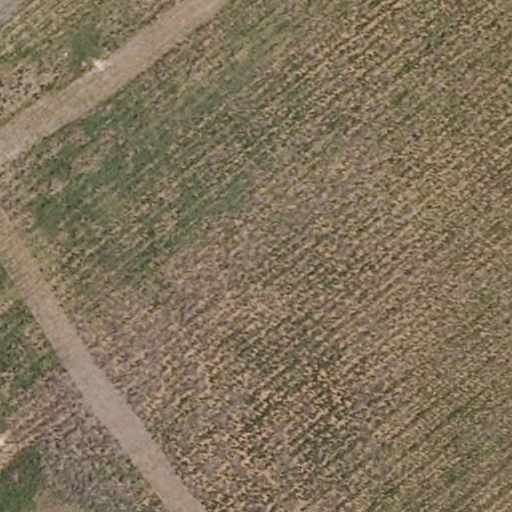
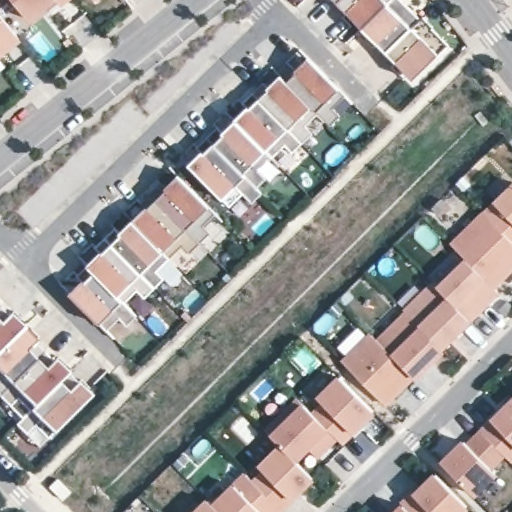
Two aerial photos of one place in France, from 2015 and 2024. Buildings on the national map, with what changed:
new [(29,19),(13,0),(50,0),(29,19)]
new [(59,2),(57,0),(62,0),(59,2)]
new [(420,19),(422,17),(434,28),(432,30),(449,46),(414,81),(334,0),(399,0),(420,19)]
new [(0,58),(0,15),(22,41),(0,58)]
new [(197,147),(190,140),(211,119),(218,127),(242,102),(235,95),(256,74),(263,81),(276,69),(273,67),(283,57),(291,64),(303,51),(339,87),(326,101),(339,114),(330,124),(311,105),(298,118),(312,132),(292,151),(278,137),(253,162),(263,173),(253,183),(262,192),(252,202),(242,192),(229,206),(184,160),(197,147)]
new [(163,182),(171,189),(183,177),(212,206),(200,218),(214,233),(203,243),(153,192),(163,182)]
new [(372,332),(378,338),(407,310),(406,309),(434,280),(439,285),(468,258),(453,242),(485,210),(486,211),(512,186),(512,268),(495,285),(500,290),(443,346),(444,348),(416,376),(414,375),(386,403),(343,359),(372,332)]
new [(160,199),(188,228),(202,242),(191,254),(183,247),(170,260),(163,252),(135,224),(160,199)]
new [(85,285),(78,278),(88,267),(95,275),(108,262),(95,249),(115,229),(123,236),(135,224),(170,260),(158,273),(165,280),(145,300),(138,292),(125,305),(138,318),(128,328),(120,320),(108,333),(72,297),(85,285)]
new [(12,311),(38,338),(36,339),(56,359),(58,357),(94,392),(50,436),(37,423),(29,432),(18,423),(32,408),(19,397),(11,404),(0,393),(0,305),(9,314),(12,311)]
new [(212,503),(244,471),(252,479),(261,470),(256,466),(280,443),(265,428),(277,416),(294,400),(298,397),(319,418),(328,409),(316,397),(339,374),(375,410),(343,442),(337,436),(324,449),(318,444),(299,462),(314,477),(278,512),(191,512),(206,497),(212,503)]
new [(470,443),(512,401),(512,443),(504,452),(505,453),(492,466),(497,471),(475,493),(443,461),(466,439),(470,443)]
new [(512,443),(512,459),(504,452),(512,443)]
new [(318,444),(324,449),(316,456),(311,450),(318,444)]
new [(402,502),(414,491),(416,493),(437,473),(468,505),(461,512),(396,512),(404,504),(402,502)]

